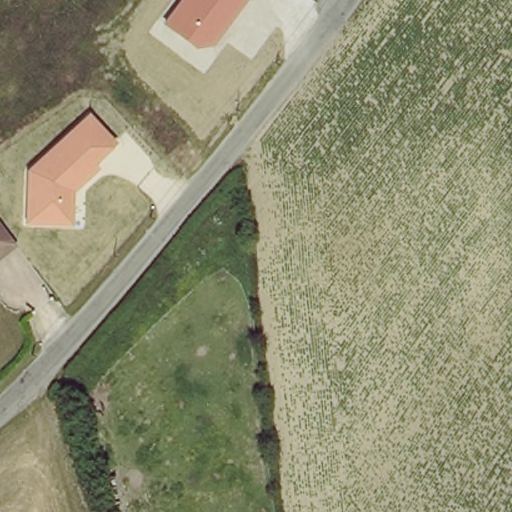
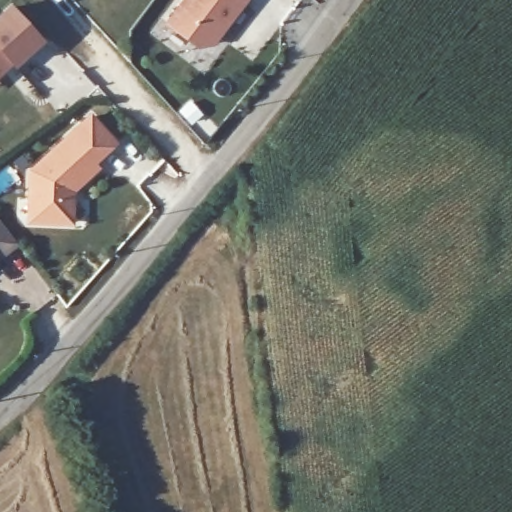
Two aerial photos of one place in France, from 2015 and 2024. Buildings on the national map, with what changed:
unchanged [(214,47),(195,48),(164,25),(183,0),(249,0),(214,47)]
new [(14,69),(11,66),(0,75),(0,14),(10,5),(44,42),(14,69)]
unchanged [(119,145),(97,164),(101,169),(75,192),(73,226),(26,224),(30,171),(91,114),(119,145)]
unchanged [(18,239),(0,253),(0,215),(18,239)]

